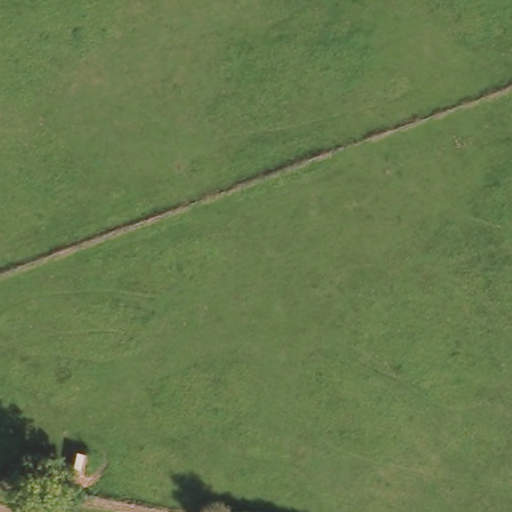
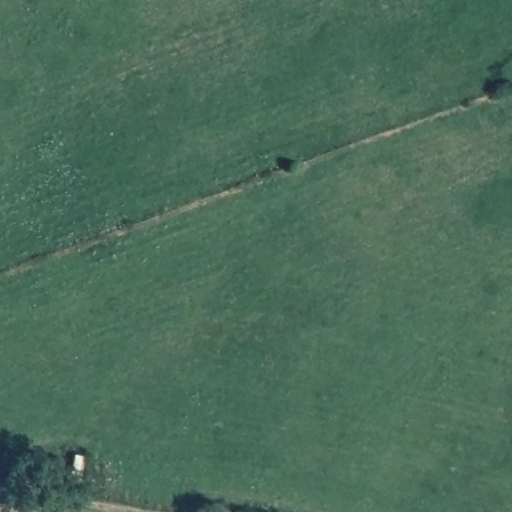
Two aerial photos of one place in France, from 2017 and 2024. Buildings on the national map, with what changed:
unchanged [(70,448),(86,452),(83,472),(67,469),(70,448)]

